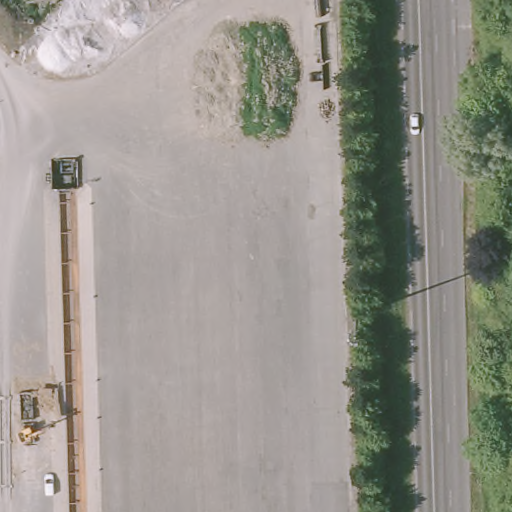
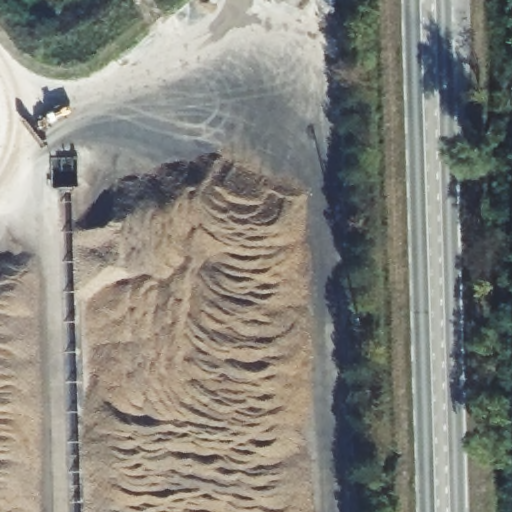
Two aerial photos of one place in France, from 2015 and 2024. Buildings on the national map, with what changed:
unchanged [(47,189),(46,160),(74,159),(75,188),(62,188),(47,189)]

